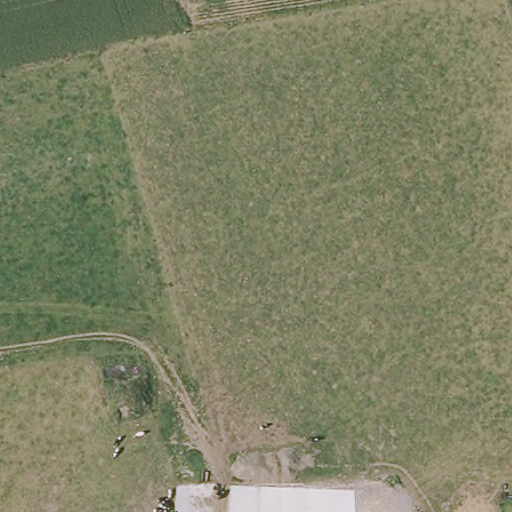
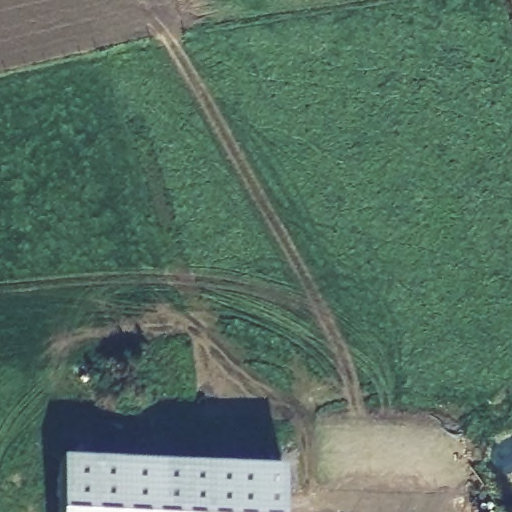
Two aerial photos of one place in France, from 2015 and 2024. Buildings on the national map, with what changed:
new [(281,512),(58,512),(59,459),(283,470),(281,512)]

